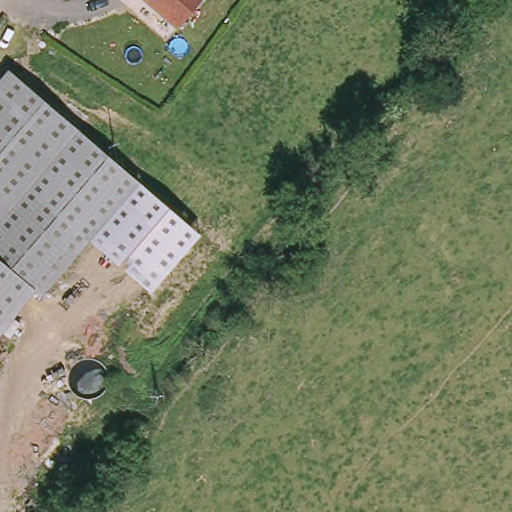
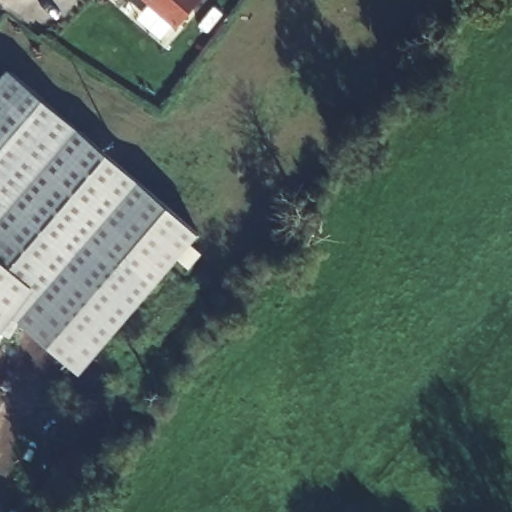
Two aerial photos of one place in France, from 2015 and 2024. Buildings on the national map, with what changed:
unchanged [(170,31),(133,0),(197,0),(170,31)]
unchanged [(42,295),(36,288),(0,335),(0,76),(9,65),(142,178),(42,295)]
unchanged [(95,234),(140,181),(201,234),(152,291),(90,239),(95,234)]
new [(81,375),(13,317),(36,288),(42,295),(90,239),(152,291),(81,375)]

